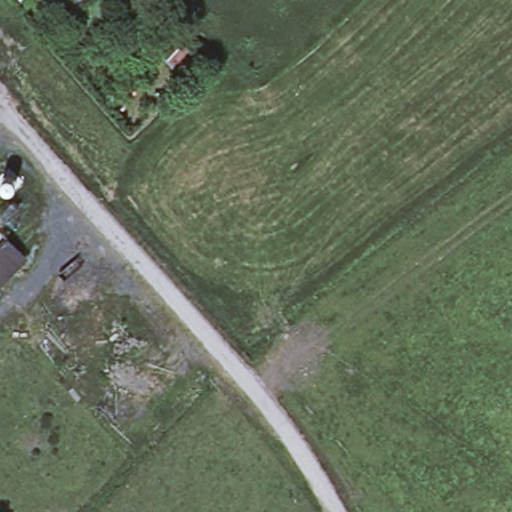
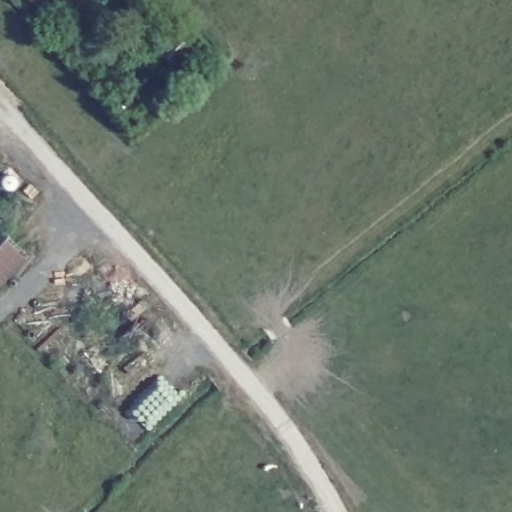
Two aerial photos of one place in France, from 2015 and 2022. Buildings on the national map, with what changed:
unchanged [(0,291),(0,240),(7,234),(33,258),(0,291)]

